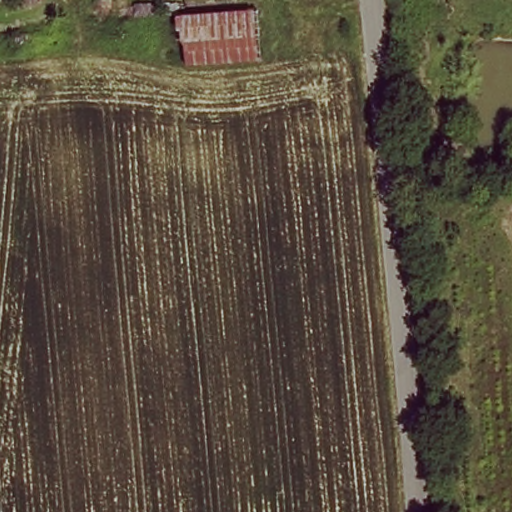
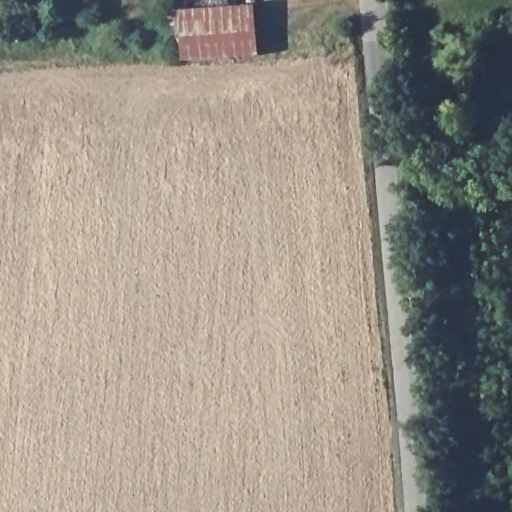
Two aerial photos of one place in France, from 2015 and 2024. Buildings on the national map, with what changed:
unchanged [(182,16),(255,8),(266,56),(188,60),(182,16)]

